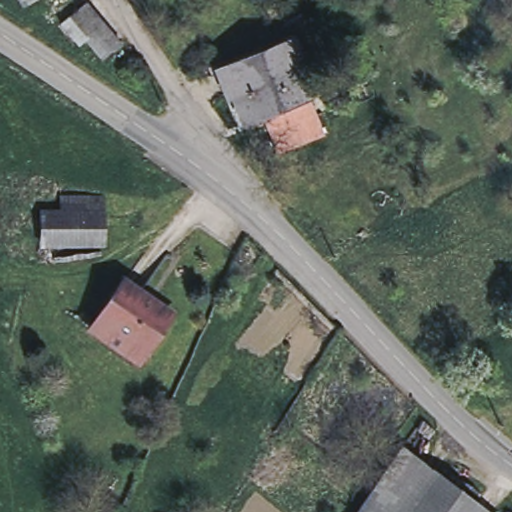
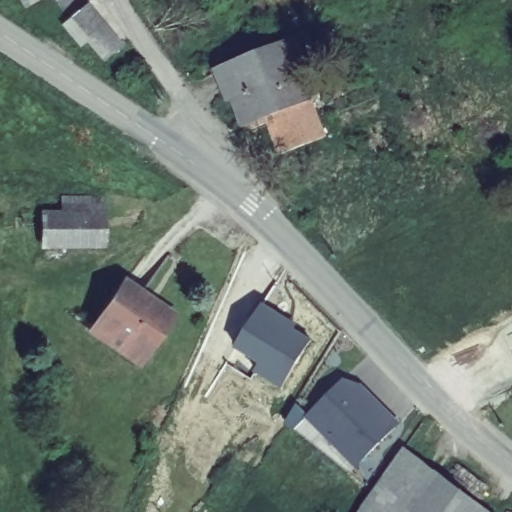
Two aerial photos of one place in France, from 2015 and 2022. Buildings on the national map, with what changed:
unchanged [(19,0),(36,0),(23,7),(19,0)]
unchanged [(85,0),(115,39),(95,54),(78,35),(73,38),(56,16),(76,0),(85,0)]
unchanged [(240,120),(228,91),(218,65),(243,55),(289,37),(301,65),(306,62),(318,89),(304,94),(319,132),(276,149),(261,111),(240,120)]
unchanged [(108,237),(108,240),(103,250),(45,250),(45,236),(45,219),(65,219),(65,204),(108,204),(108,237)]
unchanged [(124,280),(173,314),(146,354),(139,364),(90,329),(97,319),(124,280)]
new [(263,304),(298,325),(296,328),(311,339),(282,389),(253,373),(257,364),(234,348),(234,347),(263,304)]
new [(512,332),(512,349),(505,335),(512,332)]
new [(361,383),(401,424),(356,468),(304,418),(344,379),(361,383)]
unchanged [(498,512),(361,512),(408,444),(498,512)]

